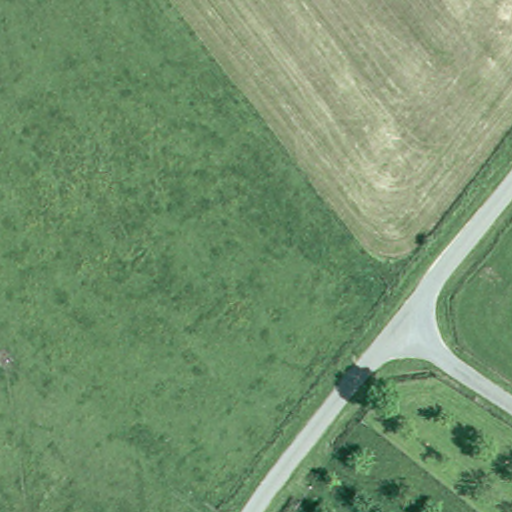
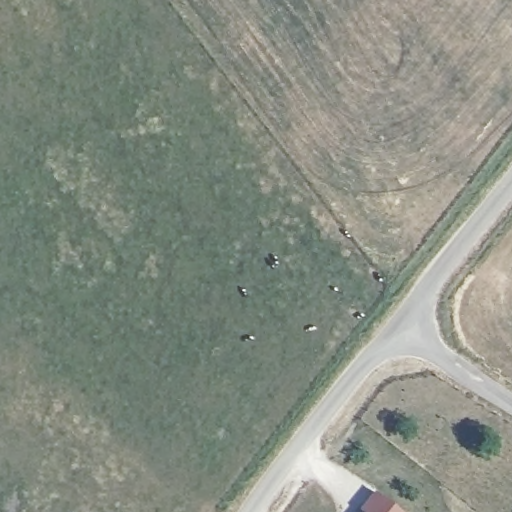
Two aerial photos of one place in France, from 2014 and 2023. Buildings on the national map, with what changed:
new [(363,510),(358,507),(373,489),(403,512),(362,512),(363,510)]

